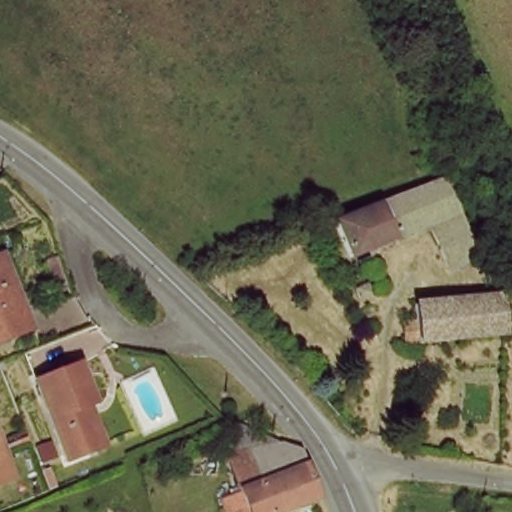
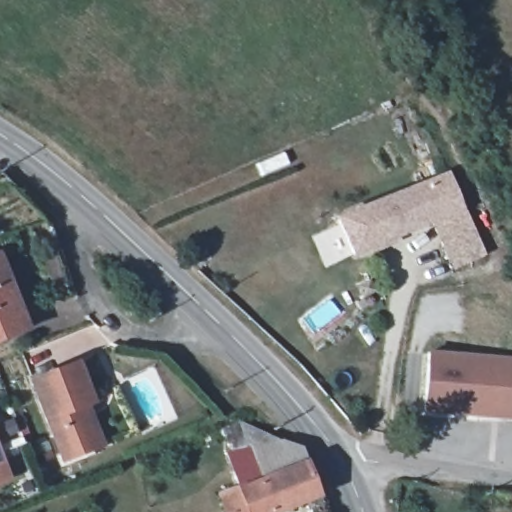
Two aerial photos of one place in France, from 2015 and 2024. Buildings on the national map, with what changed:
unchanged [(486,254),(460,266),(441,220),(405,234),(358,253),(344,220),(454,175),(467,209),(486,254)]
unchanged [(32,330),(0,342),(0,258),(2,257),(32,330)]
unchanged [(374,291),(364,296),(359,287),(370,282),(374,291)]
demolished [(423,301),(509,292),(512,327),(512,333),(428,342),(425,317),(423,301)]
new [(512,421),(423,414),(427,352),(512,357),(512,421)]
unchanged [(93,450),(70,460),(37,382),(78,365),(94,403),(85,406),(102,447),(93,450)]
unchanged [(239,420),(294,440),(318,499),(283,512),(248,512),(222,428),(239,420)]
unchanged [(8,459),(0,463),(0,440),(8,459)]

